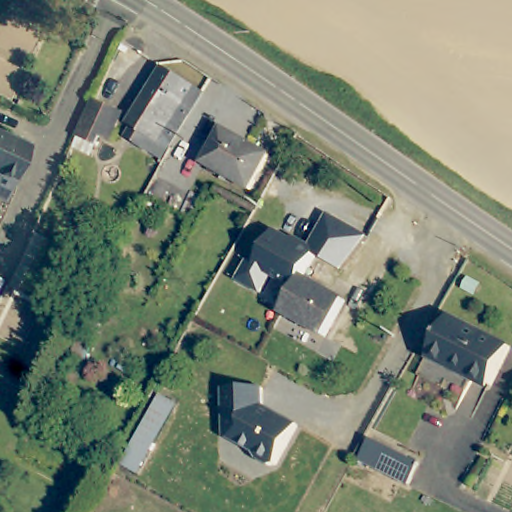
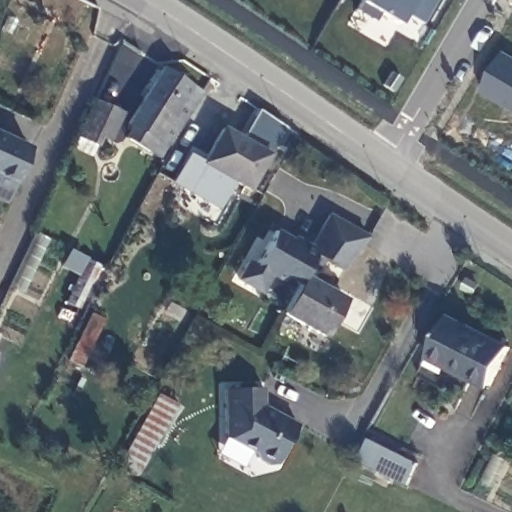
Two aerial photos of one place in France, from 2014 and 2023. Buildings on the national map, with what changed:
new [(408,12),(401,24),(382,14),(378,22),(357,10),(363,1),(364,0),(438,0),(423,23),(408,12)]
new [(480,90),(504,52),(512,57),(512,110),(480,90)]
unchanged [(202,90),(202,95),(169,147),(161,160),(129,140),(136,127),(130,123),(167,68),(202,90)]
unchanged [(116,111),(104,140),(97,137),(93,145),(83,138),(98,103),(116,111)]
unchanged [(11,192),(0,188),(0,123),(34,137),(11,192)]
unchanged [(269,156),(248,190),(206,165),(226,131),(269,156)]
new [(219,210),(172,181),(187,155),(206,165),(235,182),(219,210)]
unchanged [(302,284),(288,276),(285,281),(274,275),(264,292),(241,280),(251,261),(259,265),(277,231),(312,250),(331,216),(353,228),(370,237),(367,241),(346,269),(334,263),(318,254),(306,276),(302,284)]
unchanged [(99,274),(83,304),(68,297),(85,266),(99,274)]
unchanged [(306,276),(348,299),(328,335),(286,312),(302,284),(306,276)]
unchanged [(512,342),(512,344),(493,382),(456,364),(452,370),(434,360),(458,314),(512,342)]
unchanged [(107,323),(84,368),(69,360),(94,316),(107,323)]
unchanged [(277,416),(283,414),(302,424),(280,464),(272,464),(260,457),(255,450),(237,440),(238,437),(227,431),(226,386),(267,387),(268,411),(277,416)]
unchanged [(180,405),(142,471),(121,460),(159,392),(180,405)]
unchanged [(421,462),(410,482),(364,456),(375,435),(421,462)]

